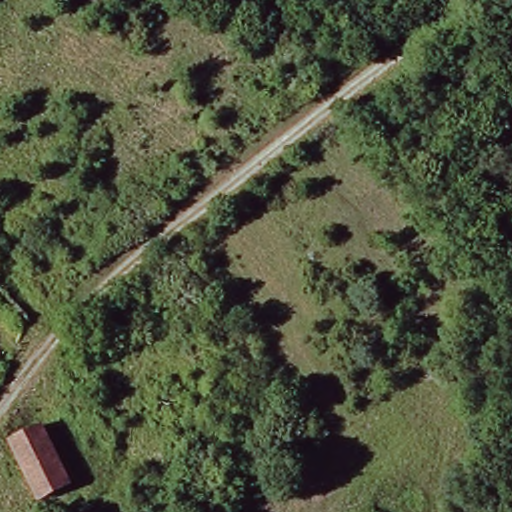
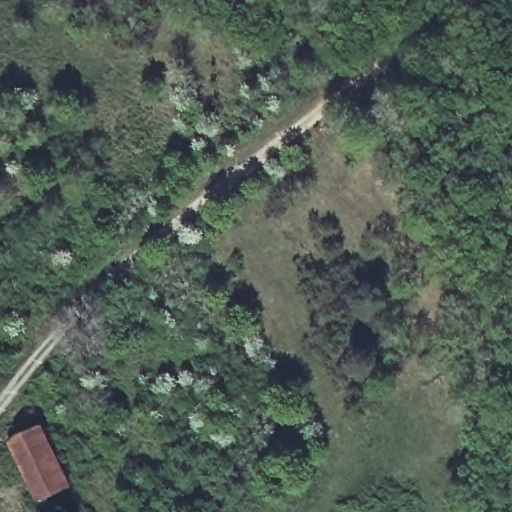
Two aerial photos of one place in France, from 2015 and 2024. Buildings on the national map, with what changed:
unchanged [(1,300),(0,299),(0,285),(8,292),(1,300)]
unchanged [(4,440),(35,425),(65,483),(34,498),(4,440)]

